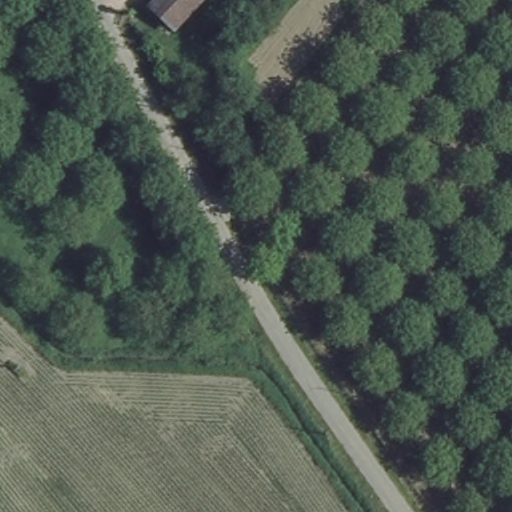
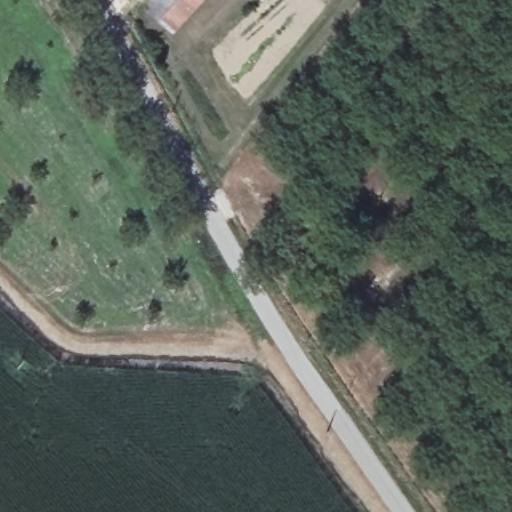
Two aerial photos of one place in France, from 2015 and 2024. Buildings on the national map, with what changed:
unchanged [(171,24),(150,0),(193,0),(171,24)]

